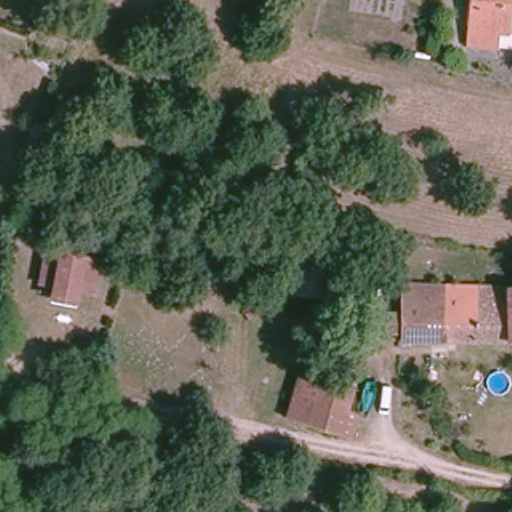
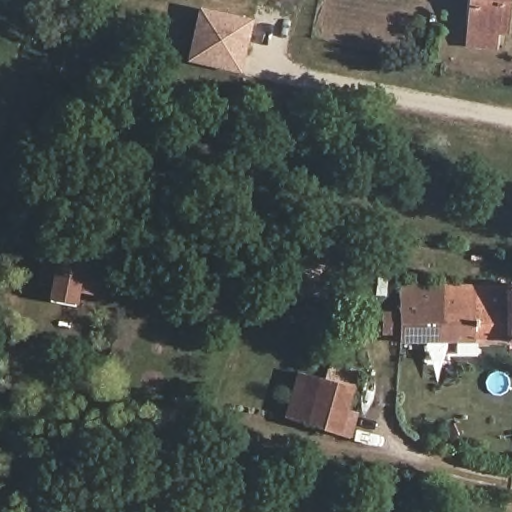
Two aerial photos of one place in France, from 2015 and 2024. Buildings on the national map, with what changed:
unchanged [(498,31),(496,46),(470,43),(474,0),(511,0),(508,32),(498,31)]
new [(196,59),(207,11),(257,23),(245,71),(196,59)]
unchanged [(286,191),(241,185),(244,157),(290,166),(286,191)]
unchanged [(98,266),(92,296),(40,284),(46,255),(98,266)]
unchanged [(317,293),(300,291),(302,263),(322,265),(339,266),(336,294),(317,293)]
unchanged [(406,342),(405,332),(389,332),(389,312),(405,312),(406,282),(512,285),(512,339),(406,342)]
unchanged [(304,367),(324,373),(312,417),(290,411),(304,367)]
unchanged [(324,373),(357,382),(351,402),(361,405),(354,429),(344,426),(312,417),(324,373)]

